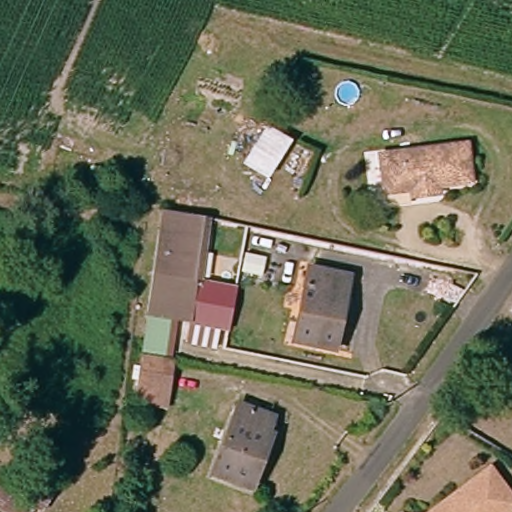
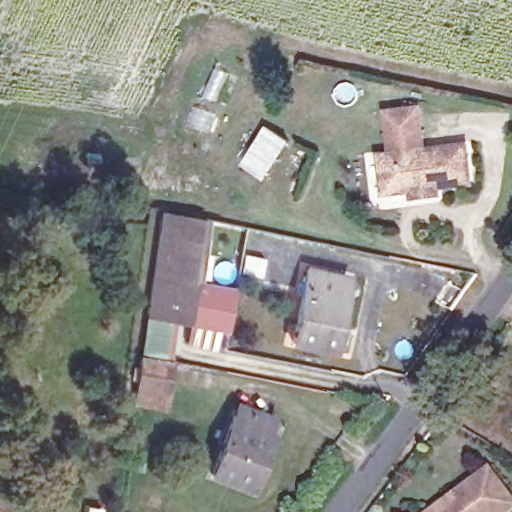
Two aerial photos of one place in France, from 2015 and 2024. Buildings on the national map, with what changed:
new [(391,156),(384,108),(421,103),(428,151),(391,156)]
unchanged [(295,143),(271,186),(240,169),(265,127),(295,143)]
unchanged [(439,187),(440,196),(412,202),(410,193),(384,196),(379,158),(468,145),(474,183),(439,187)]
unchanged [(209,226),(207,247),(160,241),(163,217),(209,226)]
unchanged [(236,335),(183,328),(178,365),(145,360),(155,283),(158,258),(160,241),(207,247),(201,290),(241,295),(236,335)]
unchanged [(337,355),(288,346),(306,264),(335,271),(343,272),(332,331),(340,333),(338,347),(337,355)]
unchanged [(138,412),(140,397),(145,361),(177,367),(173,401),(170,416),(138,412)]
unchanged [(273,423),(267,435),(274,437),(256,476),(263,479),(255,496),(214,477),(244,411),(273,423)]
unchanged [(443,499),(491,465),(512,494),(512,504),(501,512),(424,512),(443,499)]

